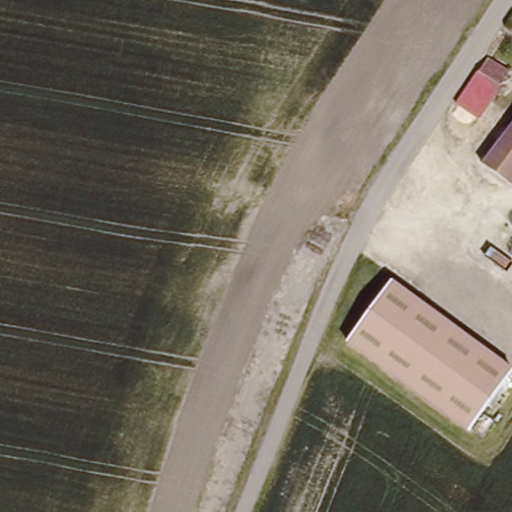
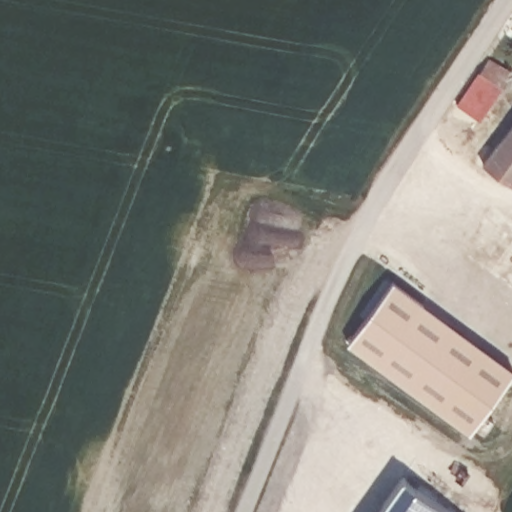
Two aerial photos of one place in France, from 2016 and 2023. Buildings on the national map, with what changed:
unchanged [(488,67),(492,62),(512,77),(512,78),(481,122),(460,108),(488,67)]
unchanged [(510,184),(480,164),(512,122),(512,181),(510,184)]
unchanged [(347,341),(392,279),(512,368),(512,372),(471,432),(347,341)]
new [(401,476),(452,512),(376,512),(401,476)]

